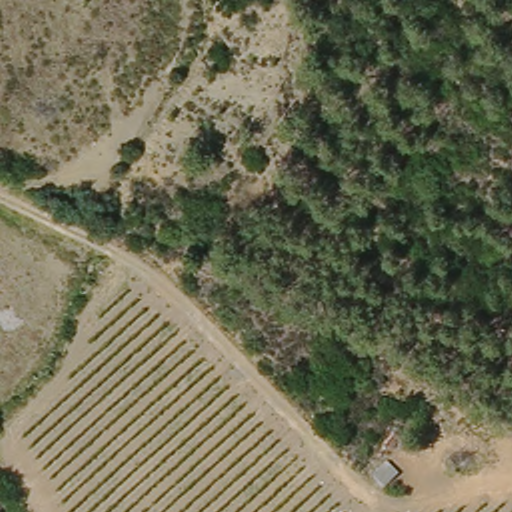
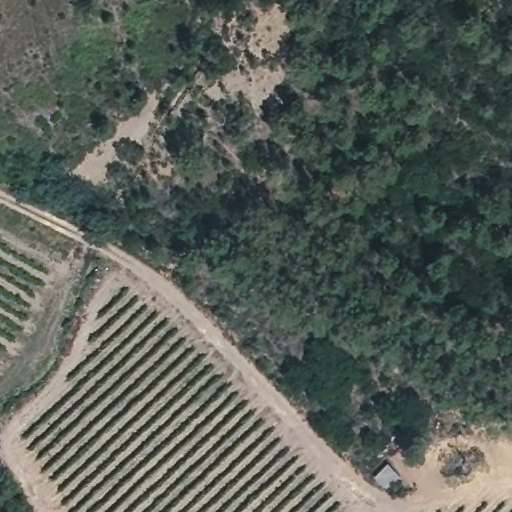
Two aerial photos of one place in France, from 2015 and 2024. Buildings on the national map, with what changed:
unchanged [(384,491),(370,481),(385,466),(398,478),(384,491)]

